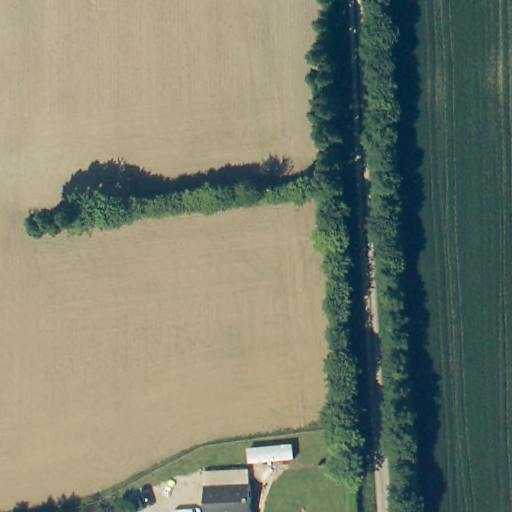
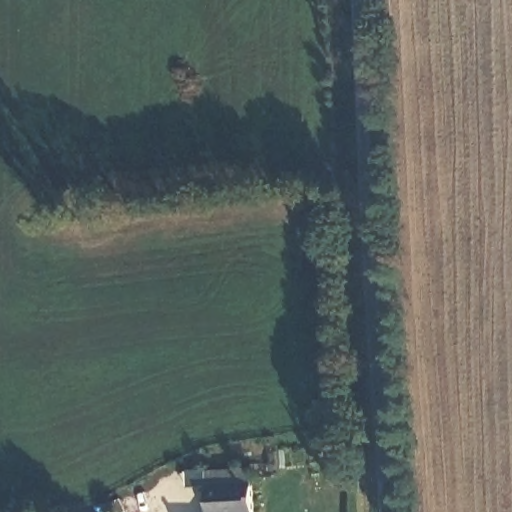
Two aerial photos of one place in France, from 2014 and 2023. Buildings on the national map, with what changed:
unchanged [(295,444),(296,460),(252,464),(250,448),(295,444)]
unchanged [(247,480),(251,512),(215,512),(212,484),(247,480)]

